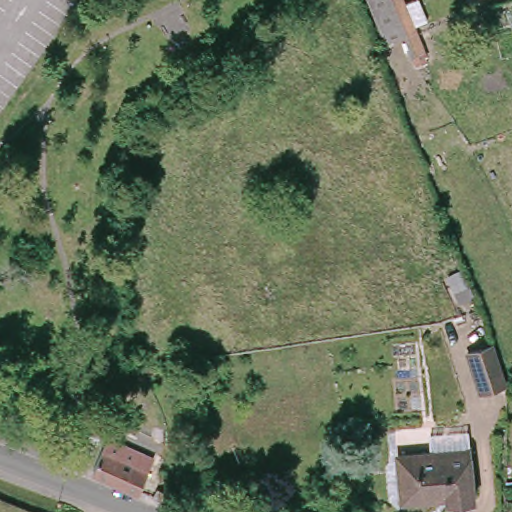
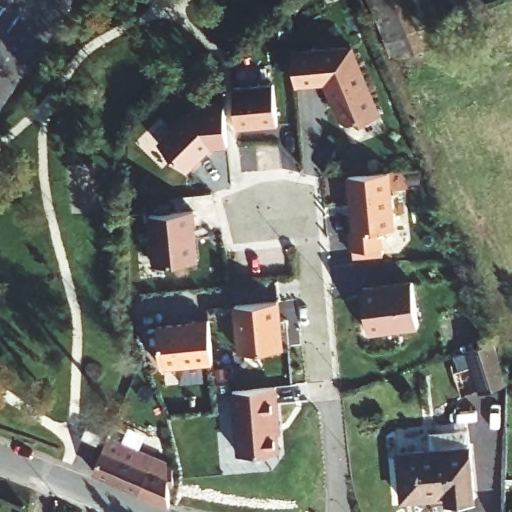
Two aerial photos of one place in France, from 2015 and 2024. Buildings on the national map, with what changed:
unchanged [(429,47),(417,52),(409,34),(391,42),(374,0),(410,0),(429,47)]
new [(352,48),(380,116),(361,124),(359,120),(349,124),(341,121),(331,99),(334,97),(330,87),(327,88),(325,84),(296,87),(293,54),(352,48)]
new [(278,126),(238,130),(233,89),(275,86),(278,126)]
new [(192,112),(224,109),(228,147),(210,149),(187,174),(159,147),(192,112)]
new [(388,173),(393,229),(354,234),(349,177),(388,173)]
new [(193,210),(194,225),(193,225),(197,261),(158,265),(153,214),(193,210)]
new [(412,278),(419,327),(370,334),(364,286),(412,278)]
new [(281,300),(286,347),(239,352),(235,306),(281,300)]
new [(193,322),(193,320),(209,319),(214,363),(163,368),(158,326),(193,322)]
unchanged [(489,345),(507,383),(483,392),(467,352),(489,345)]
new [(276,387),(278,404),(276,404),(279,450),(240,453),(234,392),(276,387)]
unchanged [(103,438),(100,447),(83,440),(87,432),(103,438)]
new [(109,436),(169,462),(169,505),(138,494),(148,472),(115,458),(120,446),(107,441),(109,436)]
unchanged [(432,457),(430,439),(467,436),(469,453),(474,505),(449,507),(448,501),(402,506),(397,461),(432,457)]
unchanged [(96,466),(103,450),(107,441),(120,446),(115,458),(148,472),(138,494),(93,475),(96,466)]
demolished [(168,496),(169,507),(152,500),(156,490),(168,496)]

